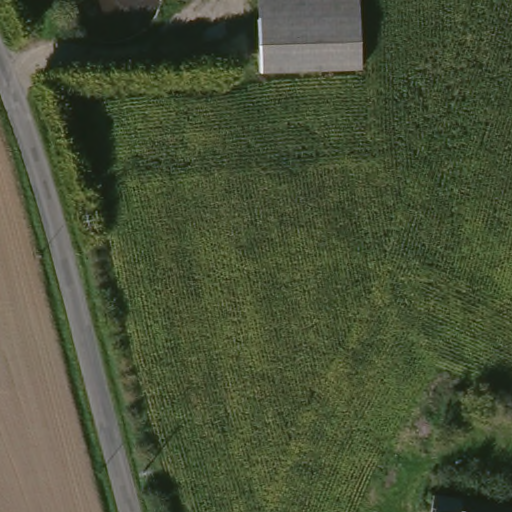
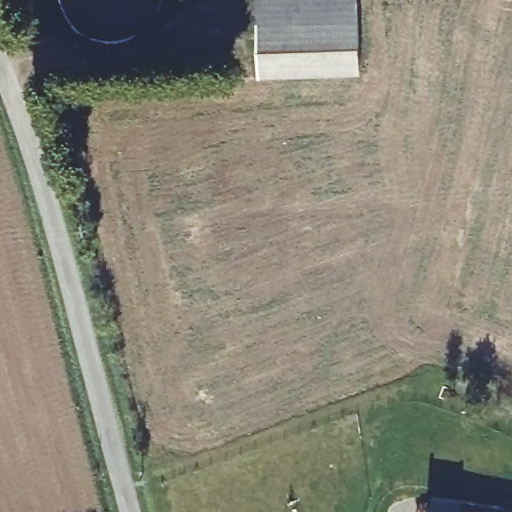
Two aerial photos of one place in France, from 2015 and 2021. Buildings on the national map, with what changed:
unchanged [(262,77),(256,0),(358,0),(364,70),(262,77)]
unchanged [(433,498),(512,511),(512,512),(430,512),(433,498)]

